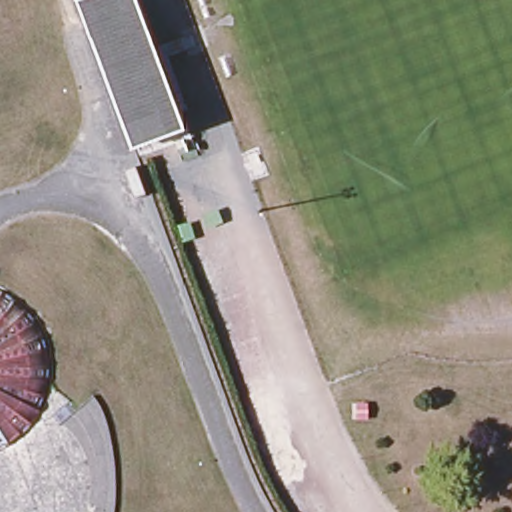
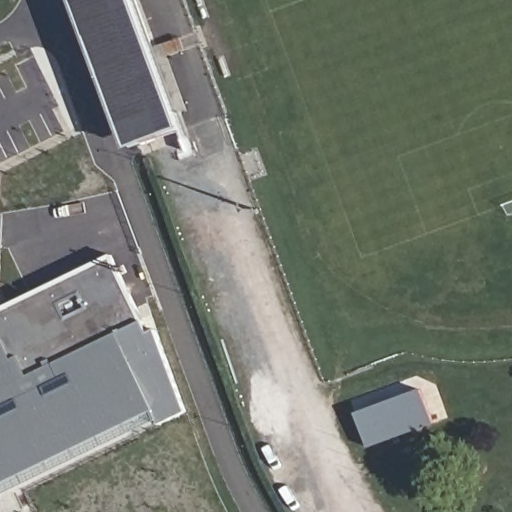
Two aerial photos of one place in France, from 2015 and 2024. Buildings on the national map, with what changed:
unchanged [(132,0),(180,134),(138,149),(92,23),(82,26),(74,4),(85,0),(132,0)]
new [(113,254),(145,320),(150,333),(158,329),(189,412),(161,425),(156,412),(0,487),(0,309),(113,254)]
demolished [(55,364),(55,366),(55,368),(55,369),(55,371),(55,373),(54,374),(54,376),(54,377),(54,379),(53,381),(53,382),(53,384),(52,385),(52,387),(51,388),(51,389),(50,392),(50,393),(49,394),(49,396),(48,398),(48,399),(47,400),(46,402),(46,403),(45,404),(44,406),(43,408),(42,409),(42,410),(41,412),(40,413),(39,414),(38,416),(37,417),(36,418),(35,419),(34,421),(33,422),(32,423),(31,424),(30,426),(29,427),(28,428),(26,429),(25,430),(24,431),(23,432),(22,433),(20,434),(19,435),(18,436),(17,437),(15,438),(14,439),(13,439),(11,441),(10,442),(8,442),(7,443),(6,444),(4,444),(3,445),(1,446),(0,447),(0,277),(0,278),(1,278),(3,279),(4,279),(6,280),(7,281),(9,282),(10,283),(11,284),(13,284),(14,285),(15,286),(17,287),(18,288),(19,289),(21,290),(22,291),(23,292),(24,293),(26,294),(27,295),(28,297),(29,298),(30,299),(31,299),(32,301),(33,302),(34,304),(35,304),(36,306),(37,307),(38,309),(39,310),(40,311),(41,313),(42,314),(43,315),(43,317),(44,318),(45,319),(46,321),(46,323),(47,324),(48,325),(48,327),(49,328),(49,329),(50,332),(51,333),(51,334),(52,336),(52,338),(52,339),(53,340),(53,342),(53,344),(54,345),(54,347),(54,349),(55,350),(55,352),(55,353),(55,355),(55,357),(55,358),(55,359),(55,361),(55,363),(55,364)]
new [(422,389),(434,424),(370,448),(357,414),(422,389)]

